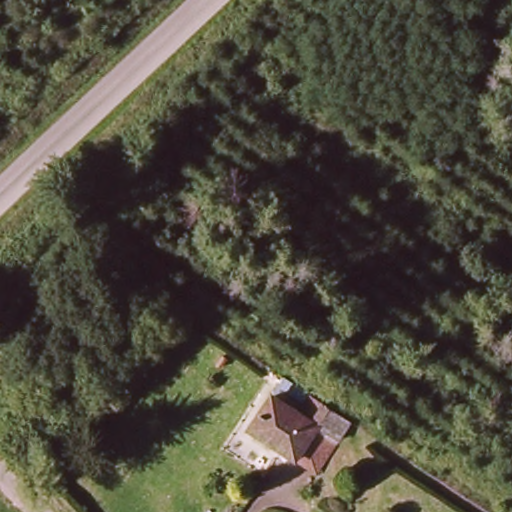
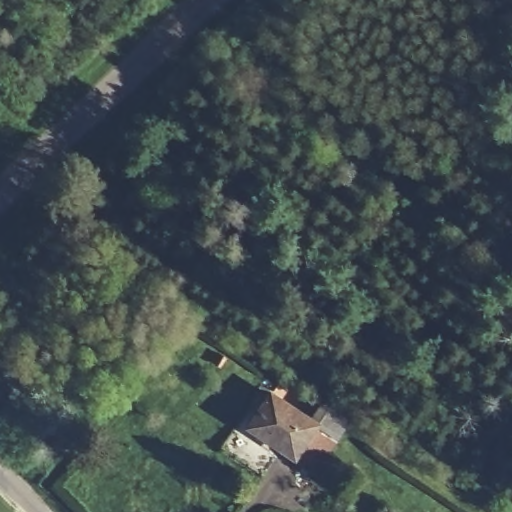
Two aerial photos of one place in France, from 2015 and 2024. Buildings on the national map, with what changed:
unchanged [(256,427),(277,394),(305,412),(316,394),(355,420),(336,448),(322,471),(256,427)]

